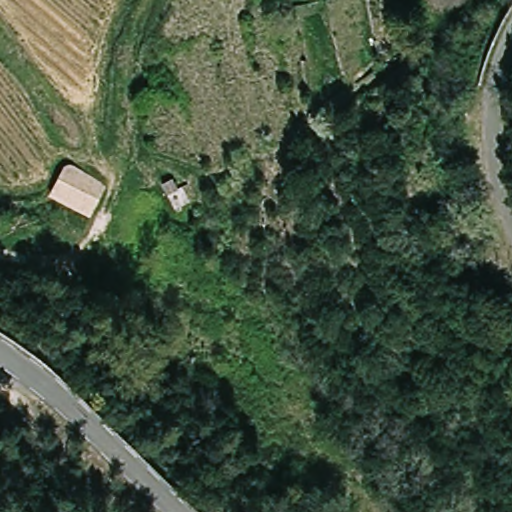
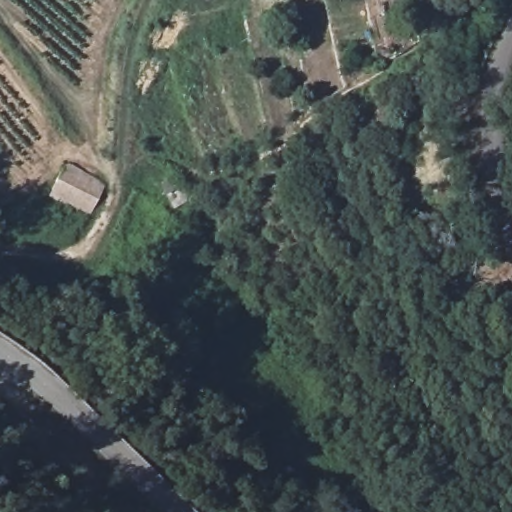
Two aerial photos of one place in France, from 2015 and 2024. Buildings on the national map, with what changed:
unchanged [(419,43),(416,45),(414,38),(412,39),(404,23),(425,12),(430,25),(419,43)]
unchanged [(113,174),(94,217),(57,200),(68,168),(71,165),(73,163),(77,161),(79,159),(99,168),(113,174)]
unchanged [(194,203),(170,216),(161,200),(187,188),(194,203)]

